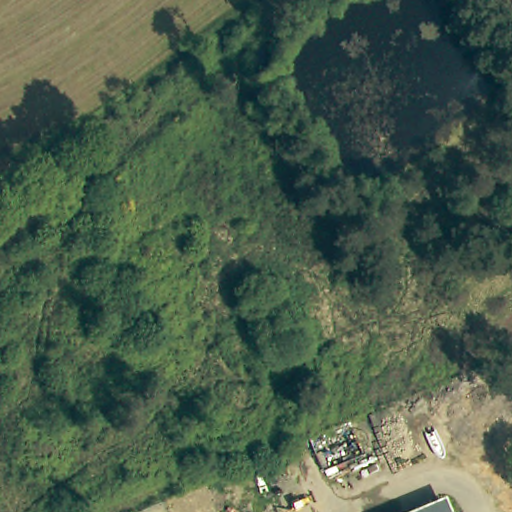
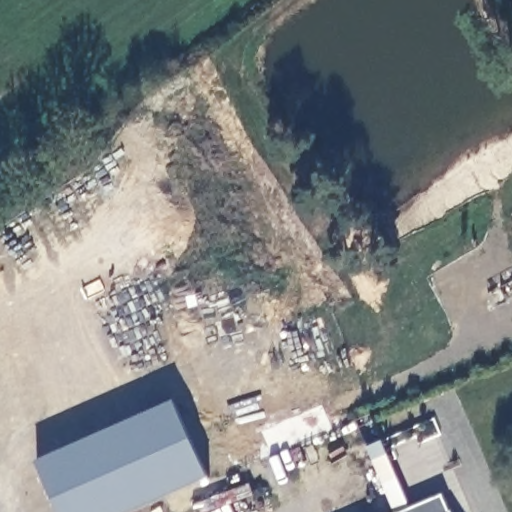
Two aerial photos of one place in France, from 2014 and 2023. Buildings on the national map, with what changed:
new [(177,400),(210,478),(131,512),(60,512),(38,462),(177,400)]
new [(368,446),(383,441),(411,512),(395,512),(368,446)]
unchanged [(445,507),(448,512),(433,512),(445,507)]

